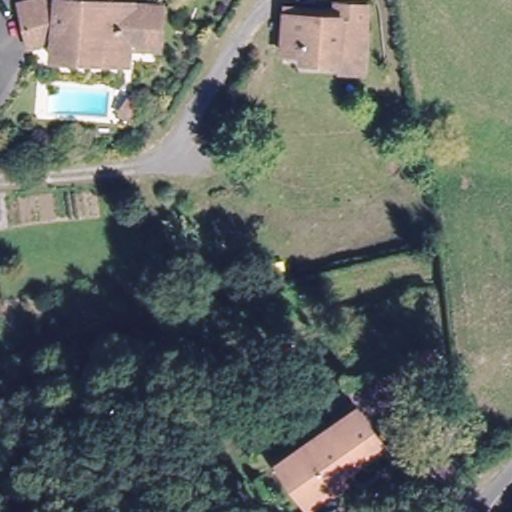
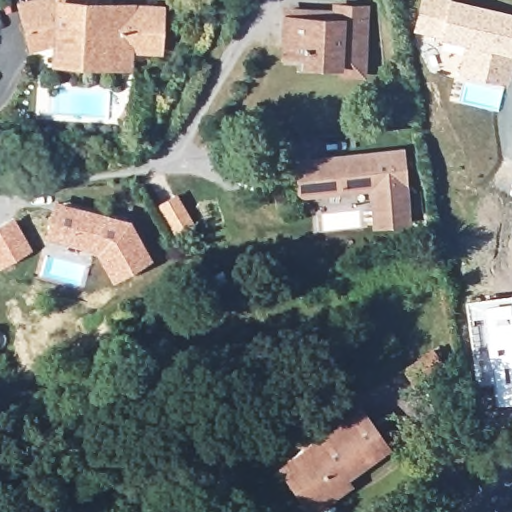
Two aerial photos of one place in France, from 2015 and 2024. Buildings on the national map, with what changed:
unchanged [(60,33),(38,40),(34,26),(27,0),(110,0),(162,6),(159,45),(132,44),(130,60),(79,54),(57,52),(59,42),(60,33)]
new [(420,0),(459,0),(512,12),(512,77),(509,84),(458,70),(465,42),(440,37),(413,29),(420,0)]
unchanged [(340,66),(340,60),(307,57),(306,52),(287,49),(290,6),(312,9),(311,14),(341,17),(343,2),(370,4),(366,55),(366,69),(340,66)]
unchanged [(154,101),(161,89),(166,81),(176,89),(172,95),(164,109),(154,101)]
new [(405,146),(413,228),(372,232),(368,192),(296,198),(293,159),(405,146)]
new [(103,210),(130,217),(152,259),(112,281),(94,248),(46,236),(54,199),(103,210)]
new [(497,404),(485,316),(471,317),(471,311),(470,298),(512,292),(512,403),(497,404)]
unchanged [(441,351),(449,363),(450,366),(427,377),(419,363),(441,351)]
unchanged [(281,457),(355,417),(365,410),(392,457),(360,476),(355,468),(342,475),(350,487),(310,508),(281,457)]

